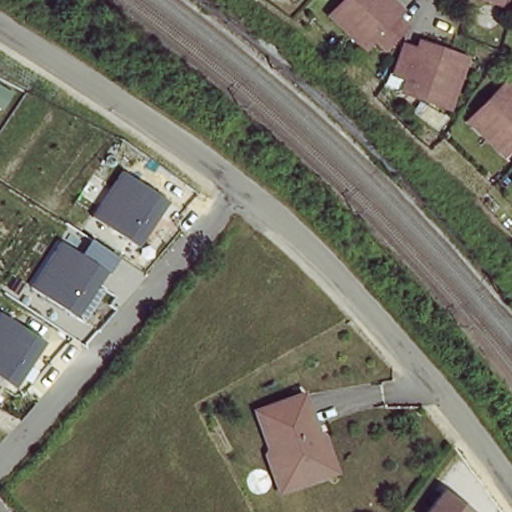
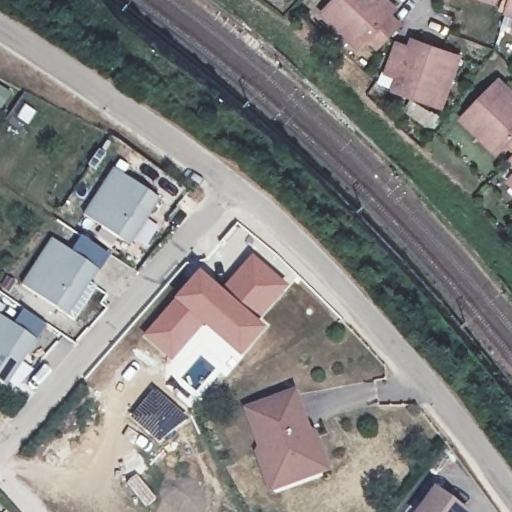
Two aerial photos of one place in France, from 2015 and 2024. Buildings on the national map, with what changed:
unchanged [(380,0),(396,16),(391,20),(401,29),(378,52),(368,43),(365,47),(347,29),(342,34),(323,18),(342,0),(380,0)]
unchanged [(510,0),(512,0),(512,11),(506,8),(510,0)]
unchanged [(398,49),(411,53),(413,47),(444,58),(460,64),(442,114),(419,106),(422,97),(399,89),(401,83),(389,79),(398,49)]
unchanged [(504,152),(486,137),(482,142),(463,123),(500,86),(511,96),(512,96),(512,153),(508,149),(504,152)]
unchanged [(512,167),(512,168),(511,167),(512,167)]
unchanged [(130,246),(82,216),(112,169),(160,201),(130,246)]
new [(80,236),(109,254),(99,270),(70,250),(80,236)]
unchanged [(68,318),(20,286),(50,240),(98,271),(68,318)]
new [(251,255),(287,287),(258,322),(220,289),(251,255)]
new [(200,271),(220,289),(258,322),(266,329),(239,359),(203,328),(170,362),(141,336),(200,271)]
unchanged [(7,388),(0,383),(0,317),(38,339),(7,388)]
new [(154,386),(188,417),(158,444),(128,416),(154,386)]
unchanged [(328,472),(304,482),(277,491),(262,456),(270,453),(253,415),(297,401),(310,431),(302,434),(305,441),(315,437),(328,472)]
unchanged [(439,491),(469,512),(424,512),(439,491)]

